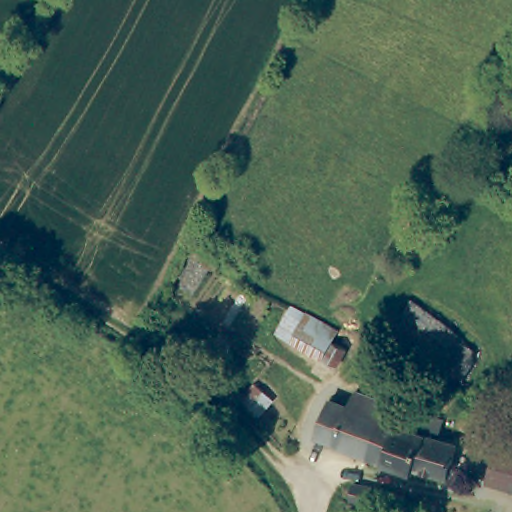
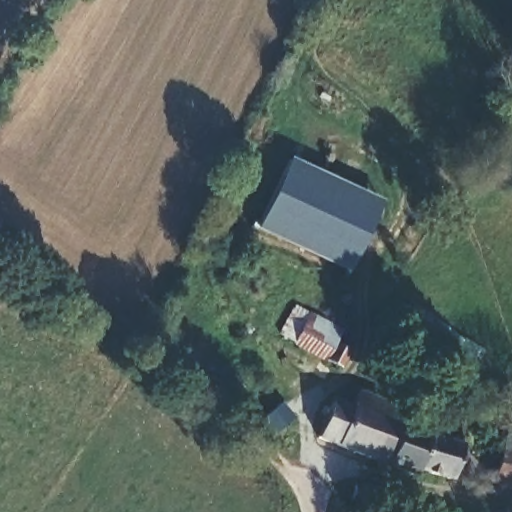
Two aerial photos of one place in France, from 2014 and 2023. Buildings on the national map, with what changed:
new [(286,163),(377,205),(345,273),(255,231),(286,163)]
unchanged [(287,347),(272,340),(288,307),(302,313),(351,338),(335,372),(287,347)]
unchanged [(394,426),(380,422),(366,457),(316,437),(333,403),(350,410),(357,393),(371,399),(380,402),(402,411),(394,426)]
unchanged [(447,482),(418,470),(415,476),(366,457),(380,422),(394,426),(461,452),(447,482)]
unchanged [(496,455),(507,428),(512,430),(512,461),(496,455)]
unchanged [(485,483),(496,455),(512,461),(512,494),(485,483)]
unchanged [(351,500),(356,482),(402,497),(398,511),(384,511),(351,500)]

